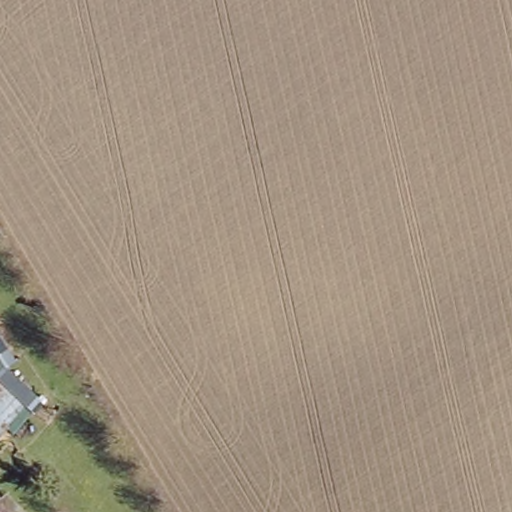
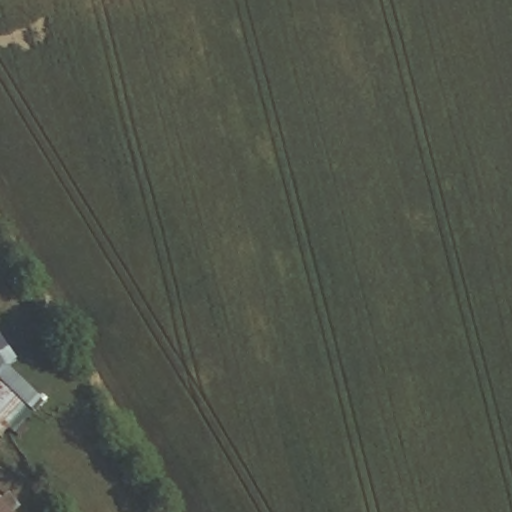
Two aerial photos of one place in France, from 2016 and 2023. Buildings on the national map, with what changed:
unchanged [(7,348),(0,353),(0,336),(7,348)]
unchanged [(5,365),(46,402),(33,415),(32,412),(14,433),(7,427),(0,435),(0,357),(5,365)]
unchanged [(18,512),(0,512),(0,495),(18,512)]

